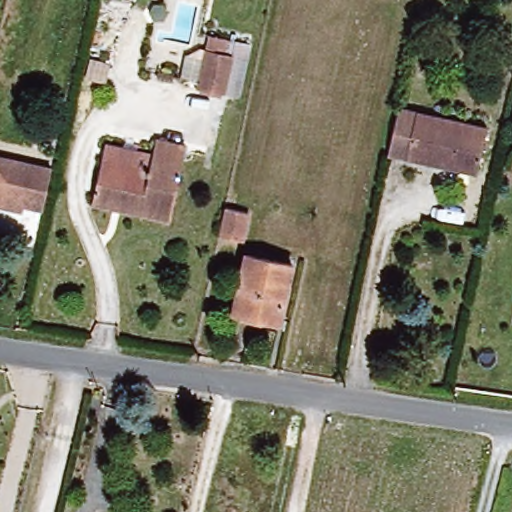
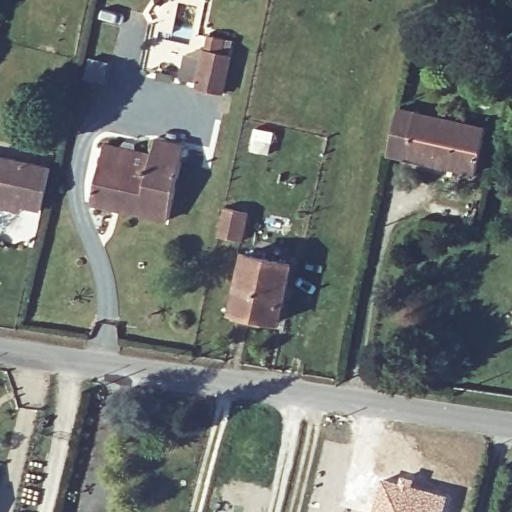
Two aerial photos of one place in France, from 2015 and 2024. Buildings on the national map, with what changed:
unchanged [(219,94),(196,90),(207,39),(232,44),(219,94)]
unchanged [(484,132),(477,169),(384,150),(393,110),(484,132)]
unchanged [(170,222),(89,206),(99,155),(145,164),(150,141),(184,147),(170,222)]
unchanged [(37,206),(0,197),(0,155),(47,166),(37,206)]
unchanged [(251,209),(246,240),(219,236),(226,204),(251,209)]
unchanged [(276,326),(249,320),(252,312),(232,307),(246,252),(290,262),(276,326)]
new [(384,477),(449,494),(444,512),(373,512),(384,477)]

